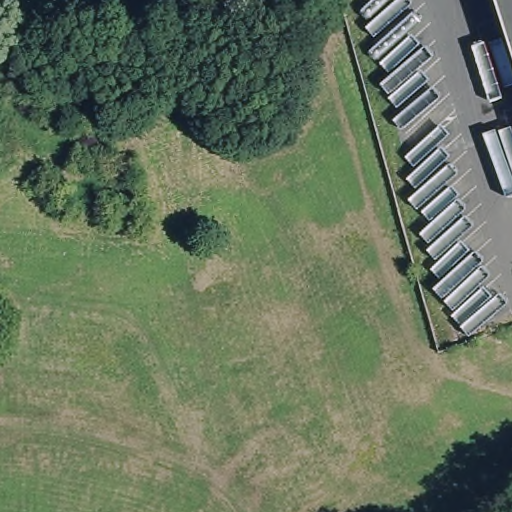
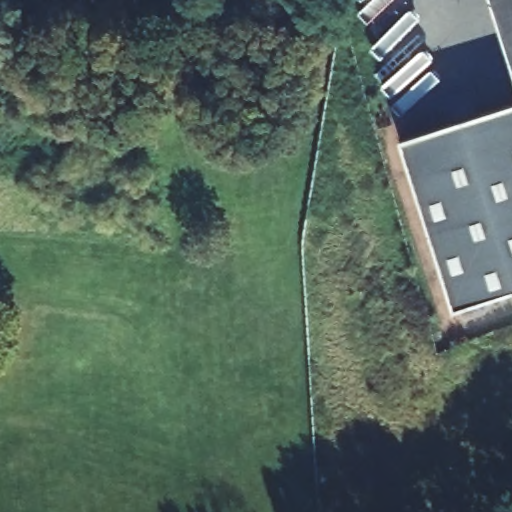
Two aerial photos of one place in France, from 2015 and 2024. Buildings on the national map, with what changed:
unchanged [(512,44),(498,0),(512,0),(512,44)]
new [(408,130),(512,99),(512,283),(460,297),(408,130)]

